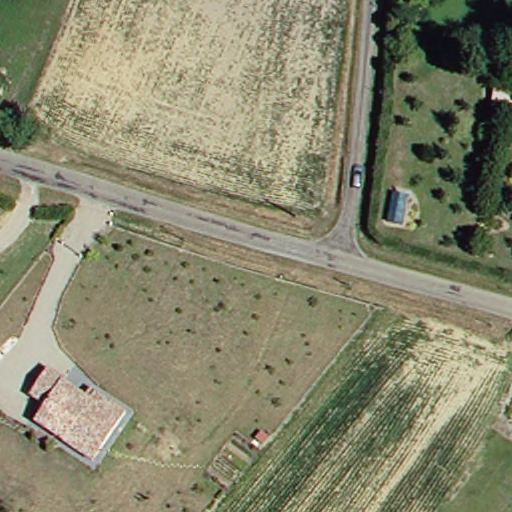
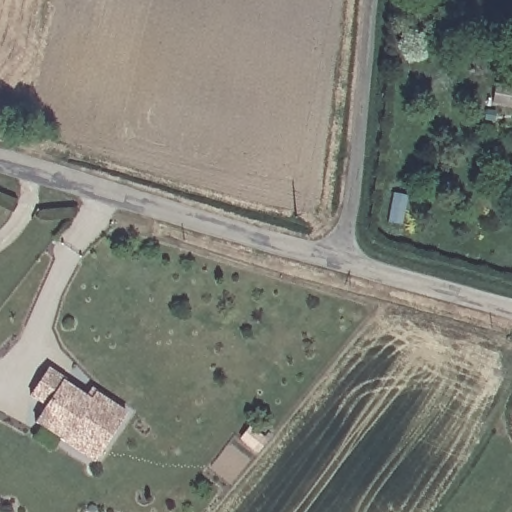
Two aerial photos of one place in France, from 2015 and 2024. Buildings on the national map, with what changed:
unchanged [(487,88),(512,90),(512,109),(488,107),(487,88)]
unchanged [(66,441),(36,421),(48,404),(32,395),(49,368),(65,378),(62,382),(91,400),(96,392),(127,411),(120,422),(102,448),(94,460),(66,441)]

